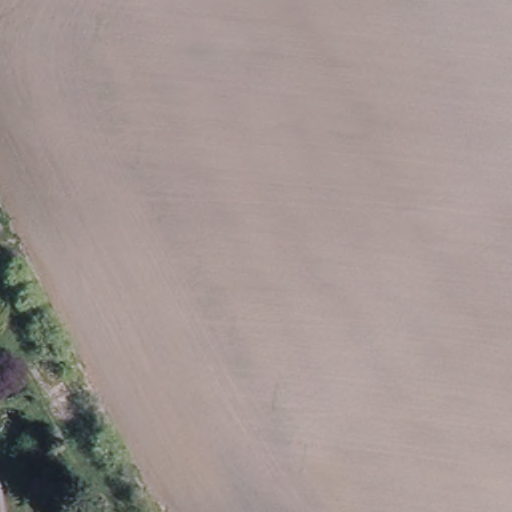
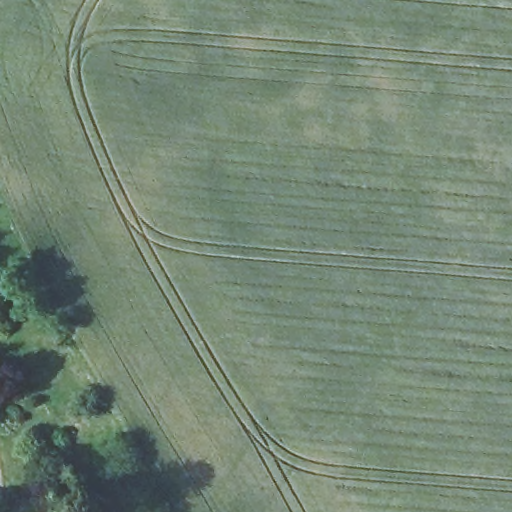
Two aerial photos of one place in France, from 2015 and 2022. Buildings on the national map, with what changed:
unchanged [(96,512),(89,512),(76,504),(84,489),(103,500),(96,512)]

